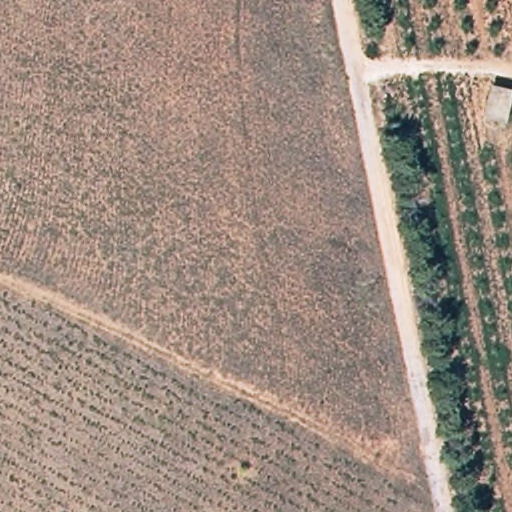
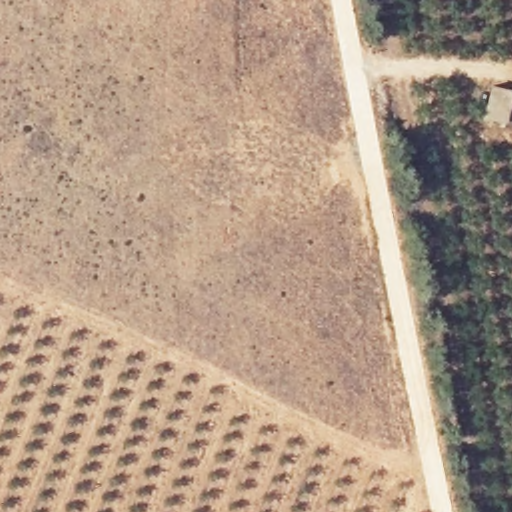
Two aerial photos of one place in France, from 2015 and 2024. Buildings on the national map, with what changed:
unchanged [(511,86),(505,111),(482,105),(488,79),(511,86)]

